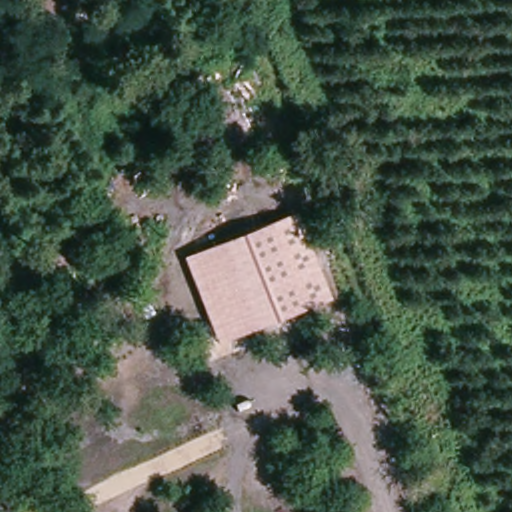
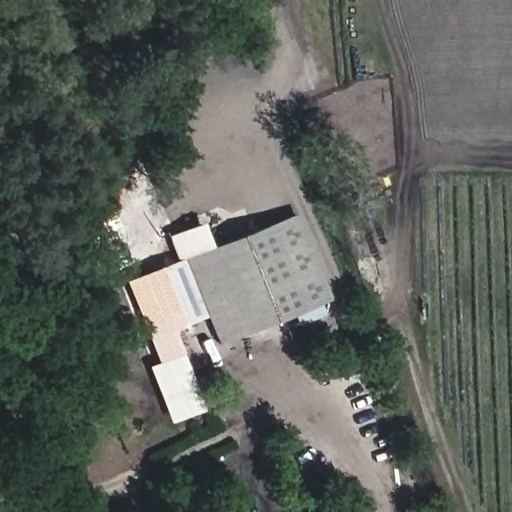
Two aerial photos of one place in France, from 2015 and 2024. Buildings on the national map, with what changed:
unchanged [(298,213),(330,299),(218,343),(186,258),(298,213)]
new [(186,258),(208,316),(173,331),(182,354),(157,363),(125,280),(175,260),(166,235),(201,222),(212,247),(186,258)]
new [(149,366),(182,354),(203,409),(170,424),(149,366)]

